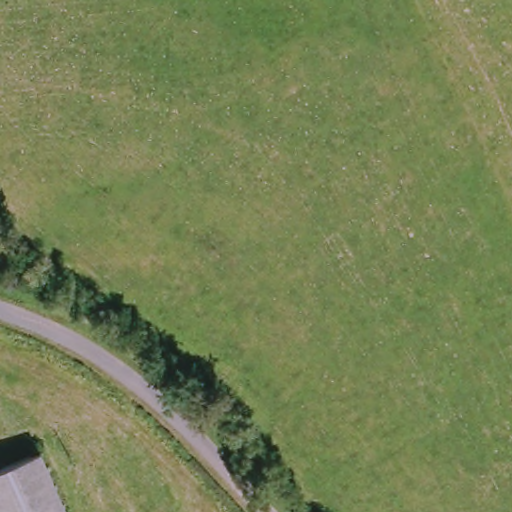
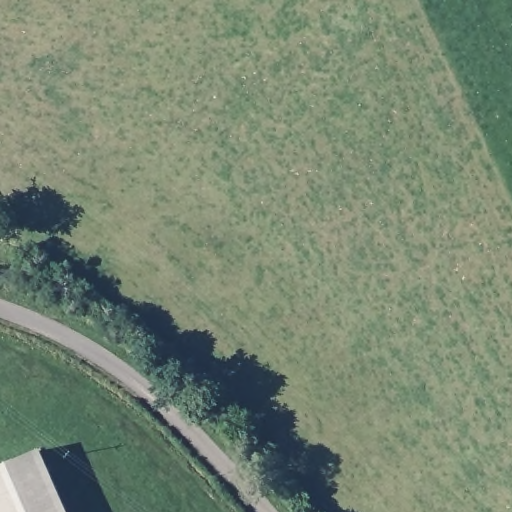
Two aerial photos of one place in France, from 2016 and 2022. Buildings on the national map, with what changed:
unchanged [(69,512),(0,512),(0,472),(43,454),(69,512)]

